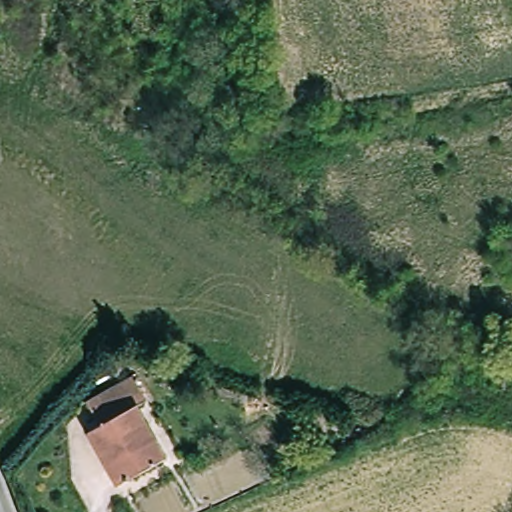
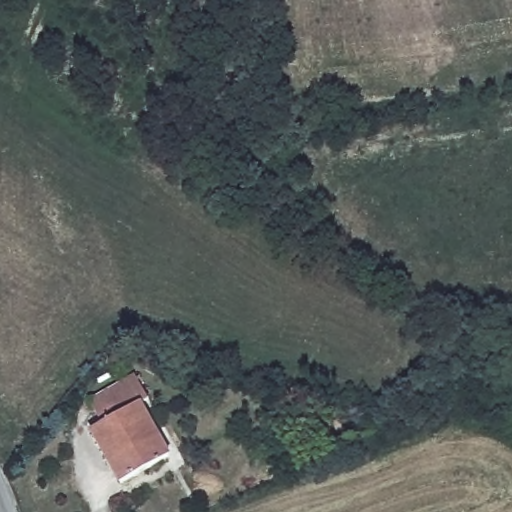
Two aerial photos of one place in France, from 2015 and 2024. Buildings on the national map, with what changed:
unchanged [(119,481),(91,430),(103,424),(88,399),(129,375),(143,399),(139,402),(159,437),(168,455),(119,481)]

